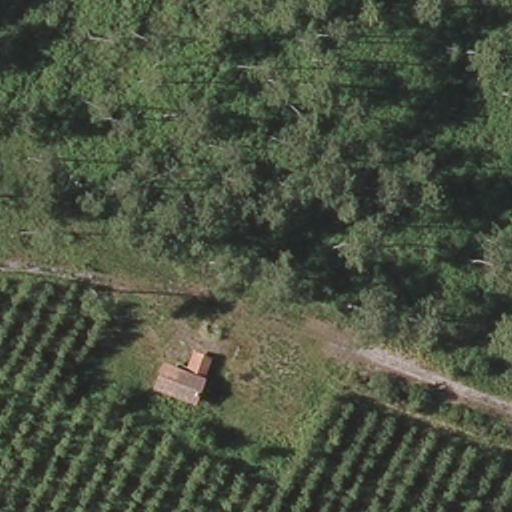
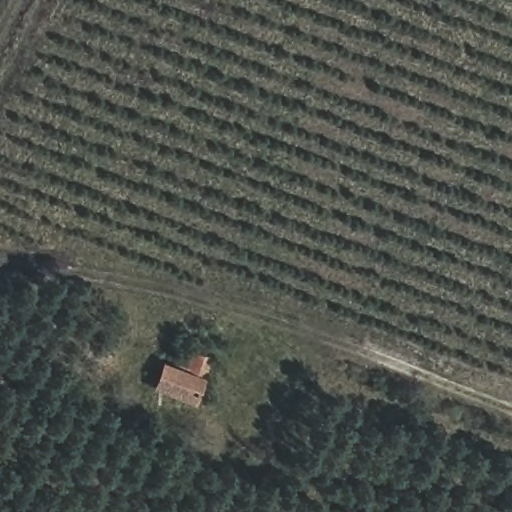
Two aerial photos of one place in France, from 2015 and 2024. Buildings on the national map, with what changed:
unchanged [(187,375),(195,351),(216,363),(194,414),(146,396),(163,364),(187,375)]

